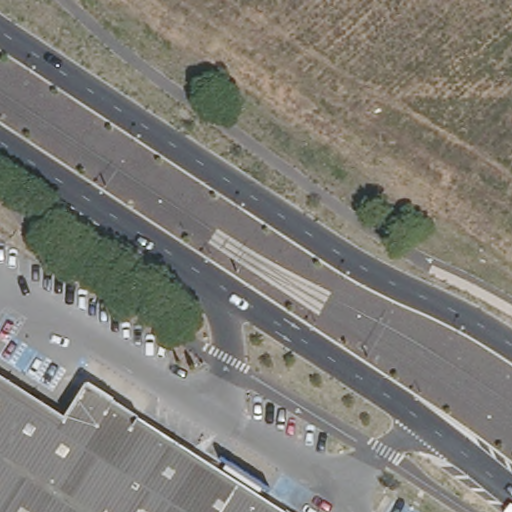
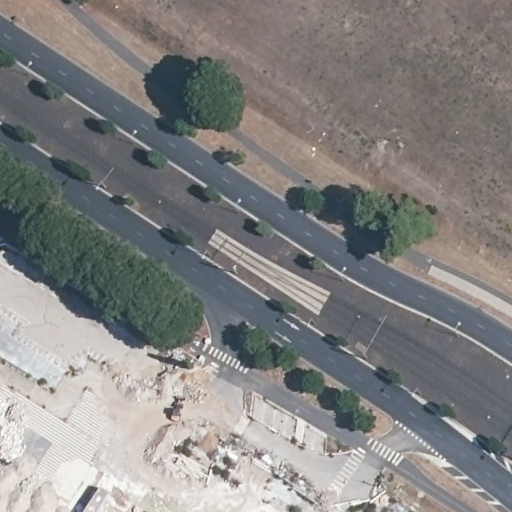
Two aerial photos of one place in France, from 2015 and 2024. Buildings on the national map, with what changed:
demolished [(90,387),(284,512),(0,512),(0,378),(66,421),(90,387)]

